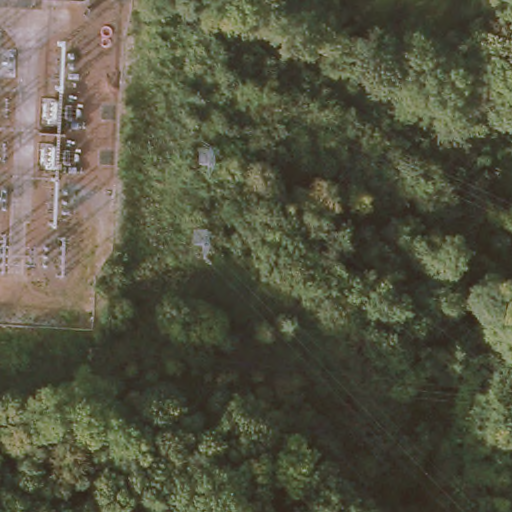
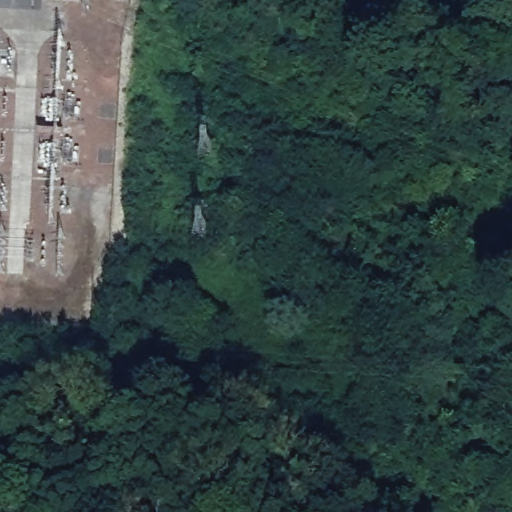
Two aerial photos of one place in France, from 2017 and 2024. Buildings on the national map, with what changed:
unchanged [(81,12),(45,12),(45,0),(82,0),(81,12)]
unchanged [(353,0),(361,0),(360,3),(353,0)]

